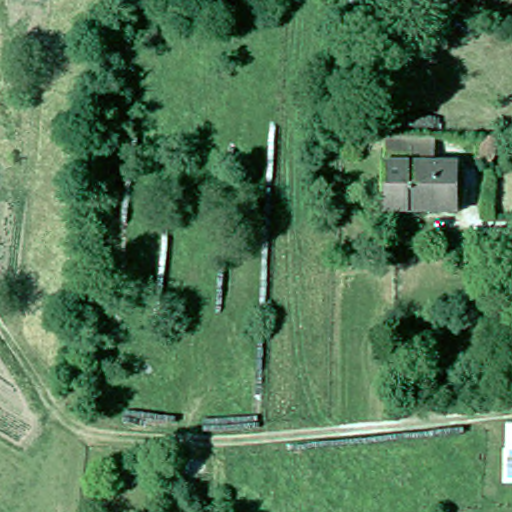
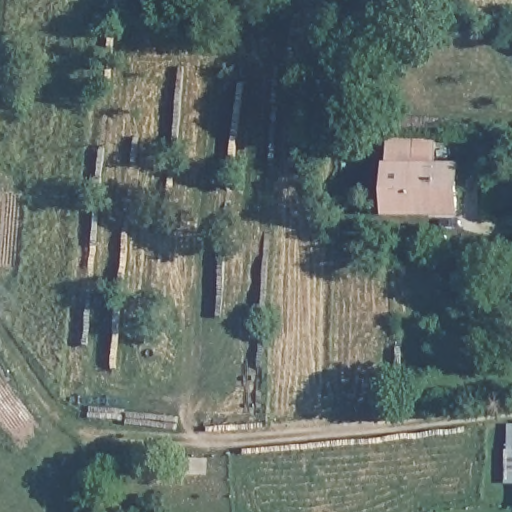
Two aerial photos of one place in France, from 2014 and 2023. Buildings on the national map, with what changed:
unchanged [(482,157),(478,157),(480,134),(492,134),(491,157),(482,157)]
unchanged [(453,169),(456,208),(392,212),(384,212),(382,166),(381,149),(380,139),(396,139),(402,139),(405,165),(445,162),(453,162),(453,169)]

